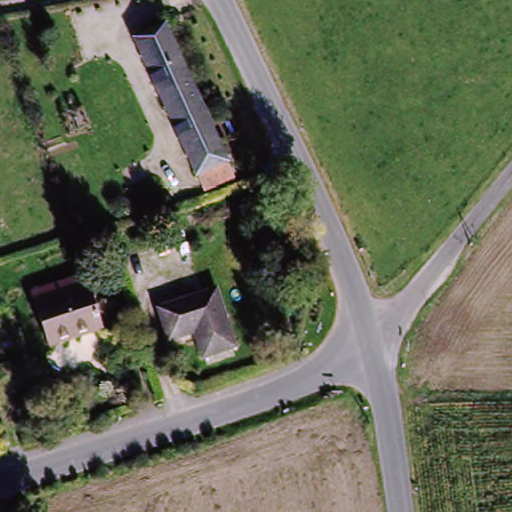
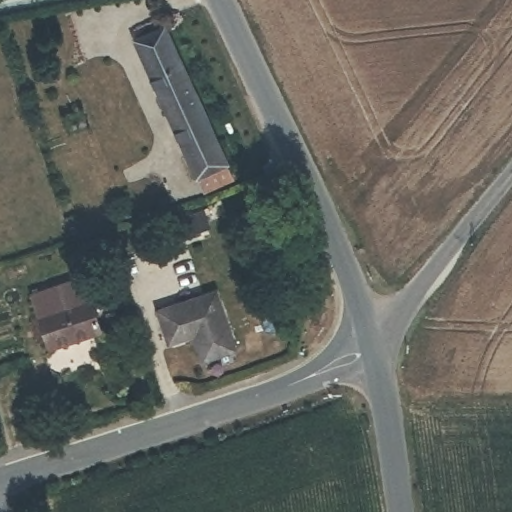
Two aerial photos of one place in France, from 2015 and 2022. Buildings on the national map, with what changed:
unchanged [(223,162),(193,175),(136,38),(167,26),(223,162)]
unchanged [(103,330),(52,347),(35,293),(87,277),(103,330)]
unchanged [(230,335),(195,347),(190,329),(168,335),(160,305),(216,288),(230,335)]

